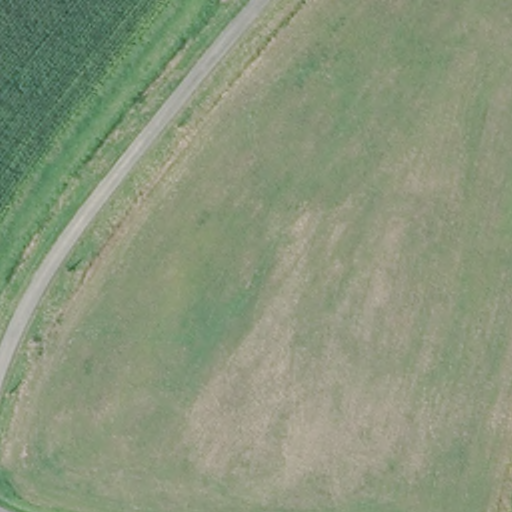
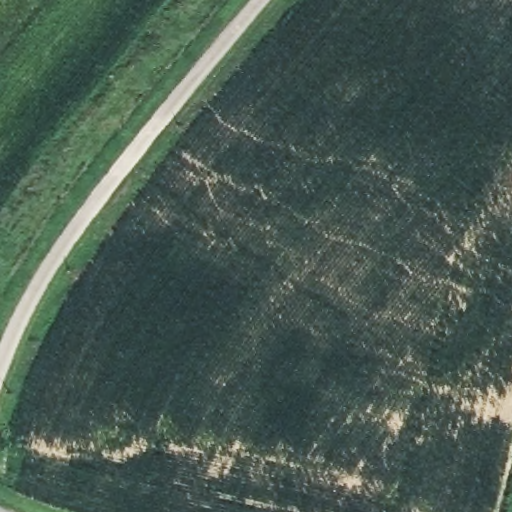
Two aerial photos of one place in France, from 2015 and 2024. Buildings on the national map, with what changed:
[]

